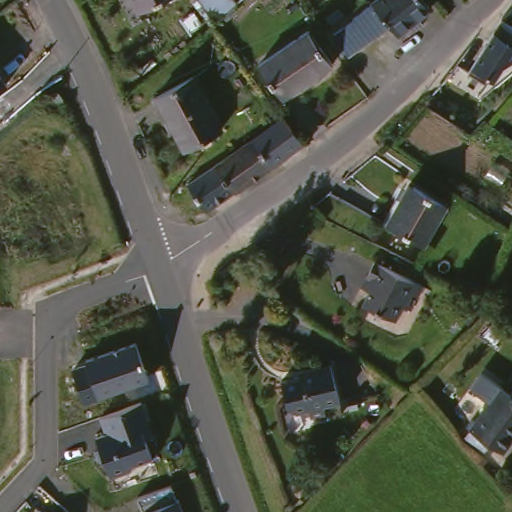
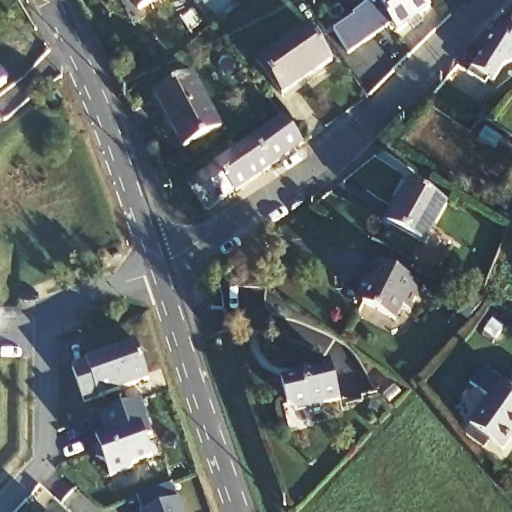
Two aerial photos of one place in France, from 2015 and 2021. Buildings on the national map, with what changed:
unchanged [(138,0),(177,0),(144,13),(138,0)]
unchanged [(217,26),(199,0),(238,0),(245,11),(217,26)]
unchanged [(414,23),(404,32),(376,2),(379,0),(430,0),(434,4),(423,14),(429,23),(421,30),(414,23)]
unchanged [(370,38),(352,55),(347,50),(335,35),(354,19),(370,38)]
unchanged [(500,19),(512,25),(512,59),(508,66),(502,63),(490,79),(471,68),(493,32),(500,19)]
unchanged [(340,59),(293,99),(266,68),(313,28),(340,59)]
unchanged [(13,88),(0,97),(0,68),(13,88)]
unchanged [(231,125),(196,149),(161,96),(196,74),(231,125)]
unchanged [(285,121),(287,119),(306,148),(296,154),(272,172),(253,143),(285,121)]
unchanged [(272,172),(240,194),(222,165),(253,143),(272,172)]
unchanged [(240,194),(221,206),(215,211),(209,214),(189,188),(222,165),(240,194)]
unchanged [(454,208),(433,247),(395,228),(418,188),(454,208)]
unchanged [(426,285),(412,309),(404,305),(396,319),(365,302),(372,289),(364,284),(378,259),(426,285)]
unchanged [(85,362),(134,344),(149,383),(100,399),(85,362)]
unchanged [(327,359),(353,387),(341,398),(347,404),(335,414),(330,409),(320,418),(311,418),(292,398),(309,381),(308,377),(327,359)]
unchanged [(505,446),(500,454),(476,439),(480,434),(478,432),(507,389),(512,392),(512,450),(511,451),(505,446)]
unchanged [(95,438),(106,435),(99,419),(143,405),(150,425),(141,429),(152,456),(129,464),(131,469),(110,477),(95,438)]
unchanged [(135,499),(171,487),(181,512),(139,512),(135,499)]

